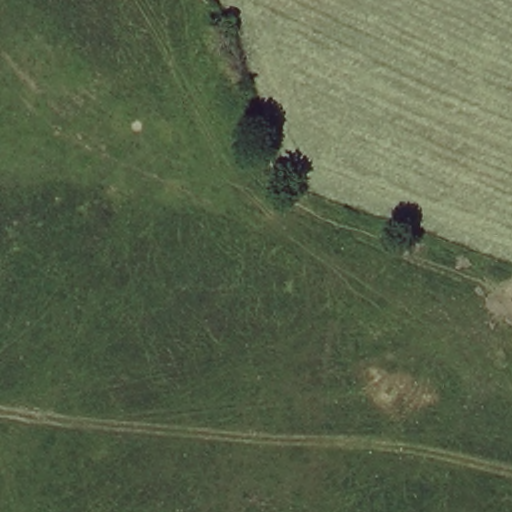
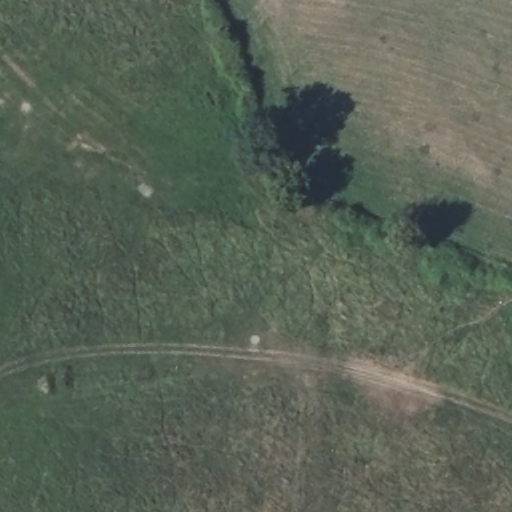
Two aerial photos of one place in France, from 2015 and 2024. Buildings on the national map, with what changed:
[]

